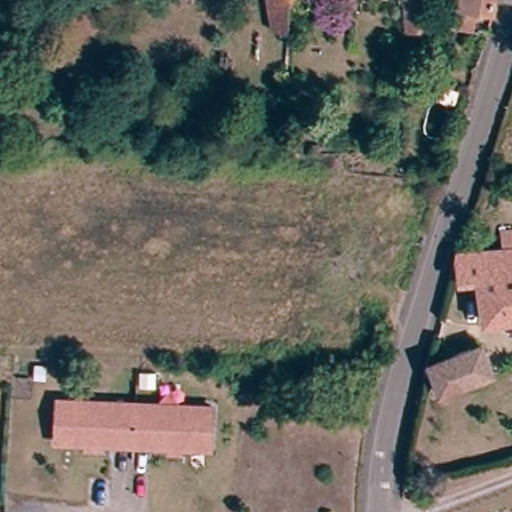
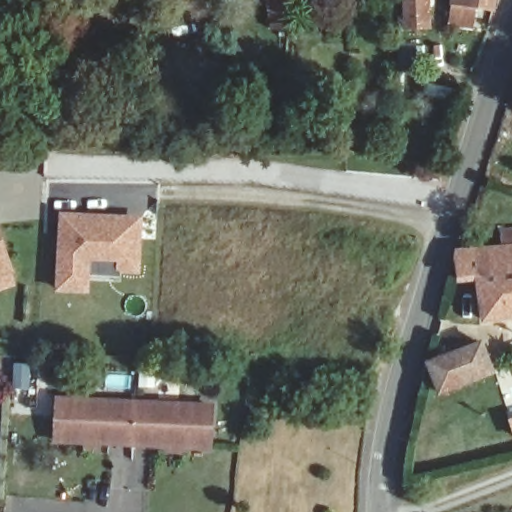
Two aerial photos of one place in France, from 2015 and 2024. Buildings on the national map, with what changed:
unchanged [(292,4),(299,34),(273,30),(267,0),(311,0),(292,4)]
unchanged [(430,25),(406,25),(406,0),(429,0),(430,25)]
unchanged [(451,22),(453,0),(454,0),(495,0),(494,6),(476,4),(473,25),(451,22)]
new [(145,217),(144,275),(119,273),(118,265),(93,264),(92,295),(57,293),(61,212),(145,217)]
new [(0,280),(0,225),(17,275),(0,280)]
unchanged [(505,245),(502,229),(512,228),(512,313),(490,316),(484,275),(466,276),(462,247),(468,247),(505,245)]
unchanged [(441,393),(429,365),(482,343),(493,373),(441,393)]
unchanged [(212,407),(210,449),(56,443),(57,401),(212,407)]

